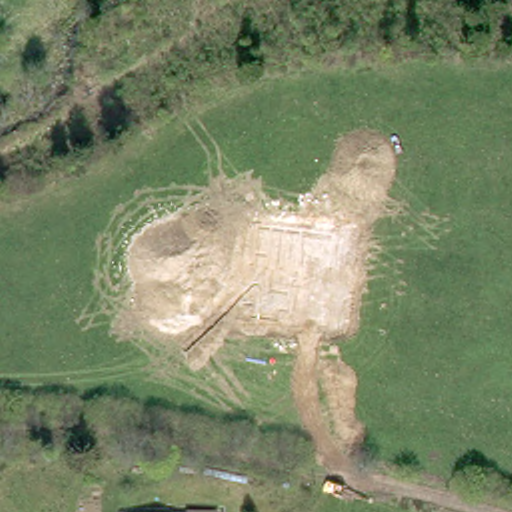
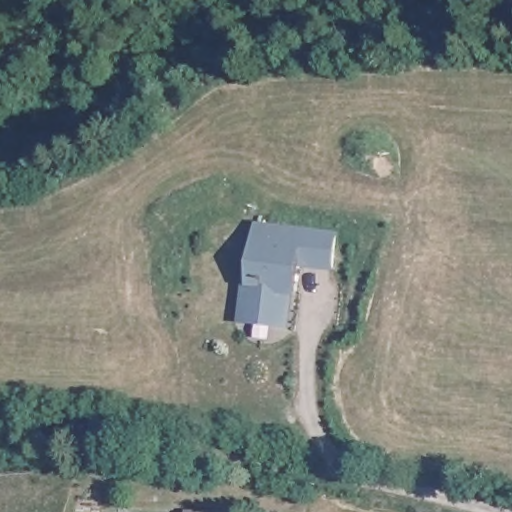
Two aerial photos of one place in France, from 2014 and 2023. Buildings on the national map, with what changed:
new [(245,277),(250,278),(257,223),(337,234),(332,273),(300,270),(292,329),(239,323),(245,277)]
unchanged [(206,512),(192,512),(192,511),(206,512)]

